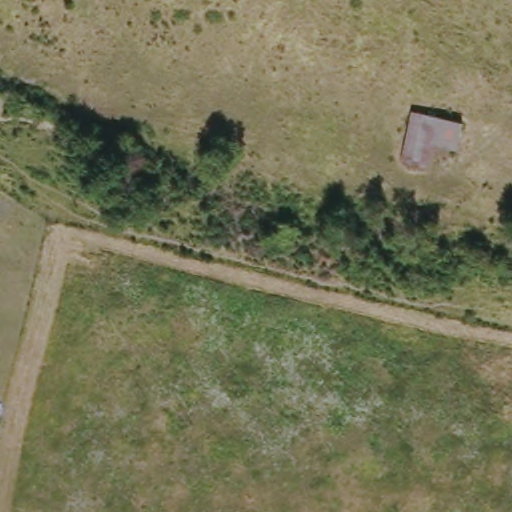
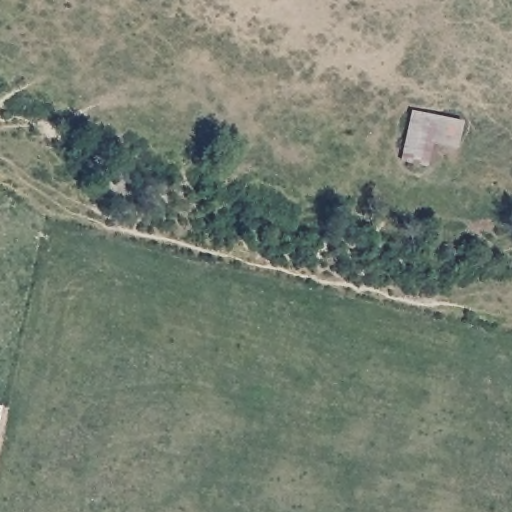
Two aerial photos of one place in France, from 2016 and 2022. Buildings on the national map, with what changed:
unchanged [(468,123),(462,152),(435,146),(432,167),(401,162),(414,109),(468,123)]

